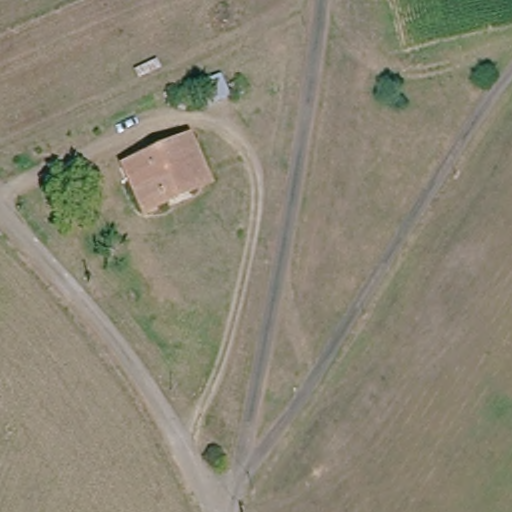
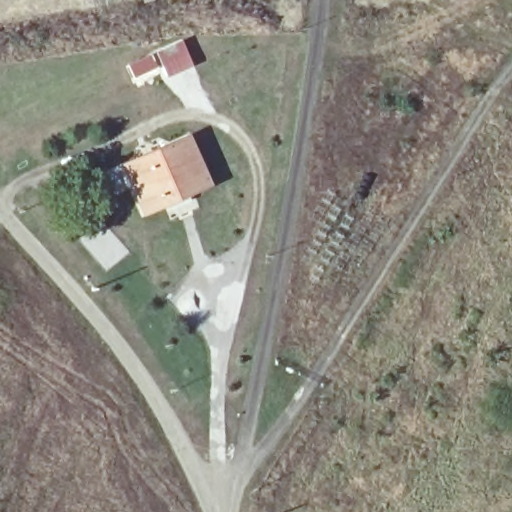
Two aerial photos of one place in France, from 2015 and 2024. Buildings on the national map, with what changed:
new [(194,64),(167,78),(161,66),(135,79),(129,66),(181,39),(194,64)]
unchanged [(191,142),(210,186),(144,215),(125,170),(191,142)]

